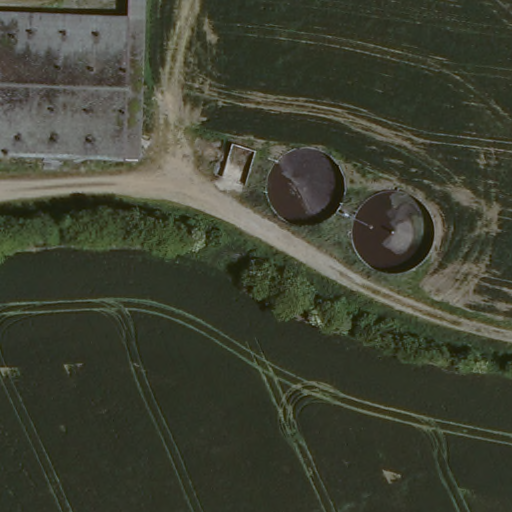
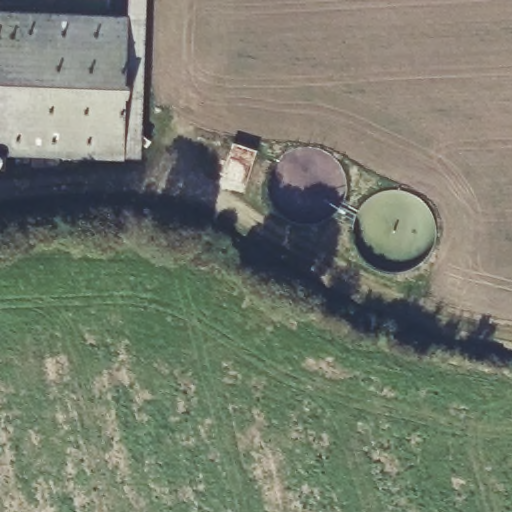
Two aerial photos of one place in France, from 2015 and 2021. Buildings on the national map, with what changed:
unchanged [(148,20),(140,25),(126,24),(127,0),(148,0),(148,20)]
unchanged [(0,15),(126,24),(140,25),(128,167),(0,158),(0,15)]

